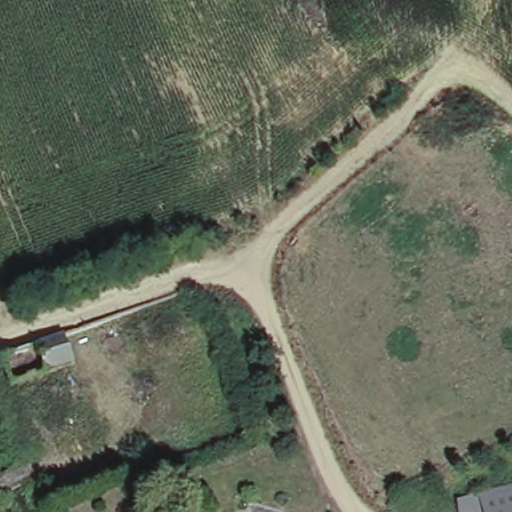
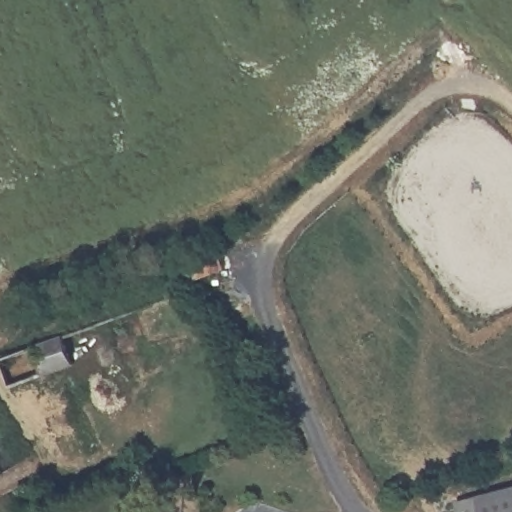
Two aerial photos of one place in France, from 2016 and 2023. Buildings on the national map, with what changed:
unchanged [(12,387),(2,358),(34,346),(63,335),(74,364),(44,375),(12,387)]
unchanged [(512,512),(454,512),(452,506),(512,487),(512,512)]

